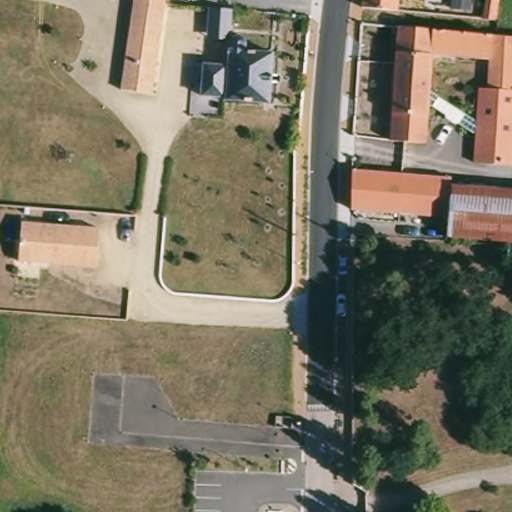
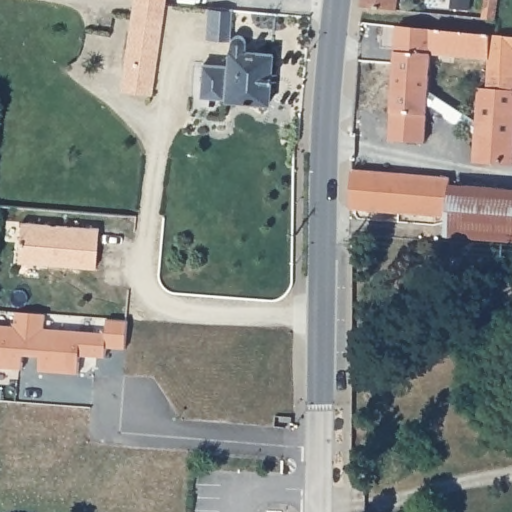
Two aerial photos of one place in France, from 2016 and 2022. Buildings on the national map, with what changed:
unchanged [(150,98),(120,94),(135,0),(165,0),(150,98)]
unchanged [(389,5),(362,2),(362,0),(398,0),(397,6),(389,5)]
unchanged [(496,21),(495,25),(484,24),(487,0),(499,0),(496,21)]
unchanged [(473,162),(478,85),(485,86),(487,59),(431,54),(425,142),(389,139),(394,50),(397,25),(512,35),(512,166),(473,162)]
unchanged [(228,65),(228,53),(230,53),(230,44),(235,41),(239,41),(243,42),(246,46),(245,56),(272,57),(269,109),(225,106),(225,103),(201,102),(204,69),(221,70),(221,65),(228,65)]
unchanged [(402,175),(451,179),(451,185),(449,226),(399,222),(350,219),(351,171),(402,175)]
unchanged [(448,237),(449,226),(451,185),(512,191),(512,242),(448,237)]
unchanged [(106,225),(103,263),(26,258),(28,220),(106,225)]
new [(125,348),(107,347),(106,356),(80,355),(78,372),(40,368),(41,353),(24,352),(22,366),(0,364),(0,325),(16,326),(17,311),(45,313),(44,327),(107,333),(108,319),(127,320),(125,348)]

